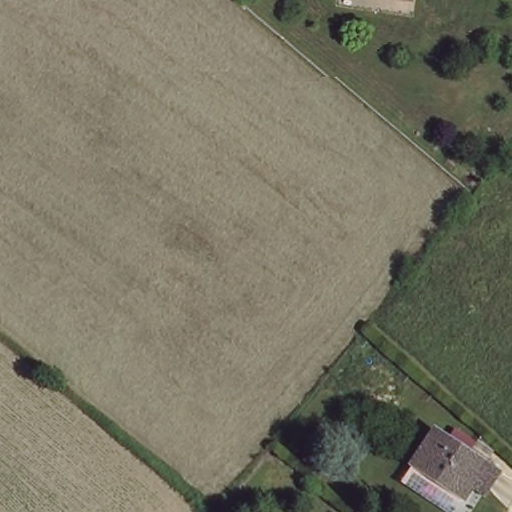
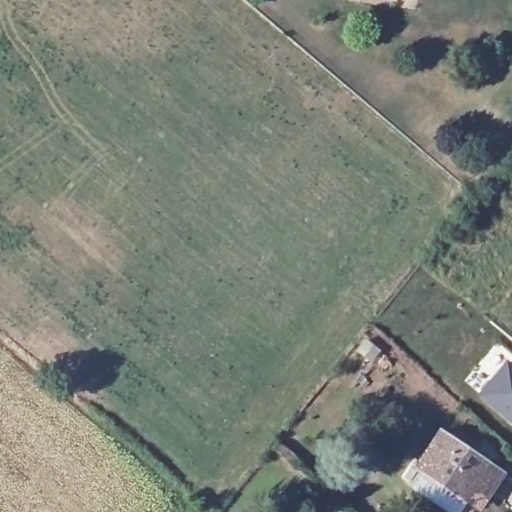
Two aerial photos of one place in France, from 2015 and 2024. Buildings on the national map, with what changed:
new [(480,394),(505,362),(512,368),(512,421),(480,394)]
unchanged [(470,504),(425,470),(411,460),(434,424),(447,434),(494,468),(470,504)]
unchanged [(340,512),(335,512),(337,509),(340,512)]

